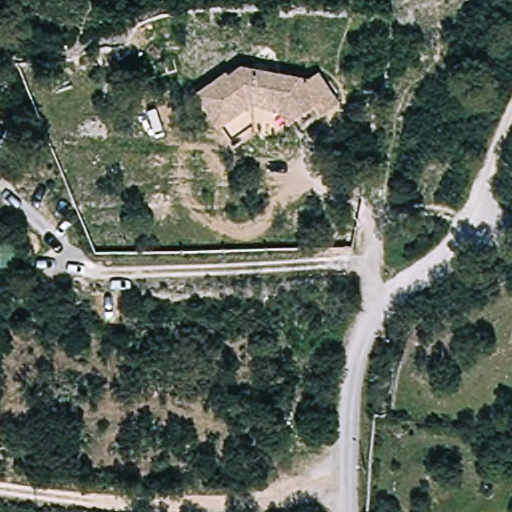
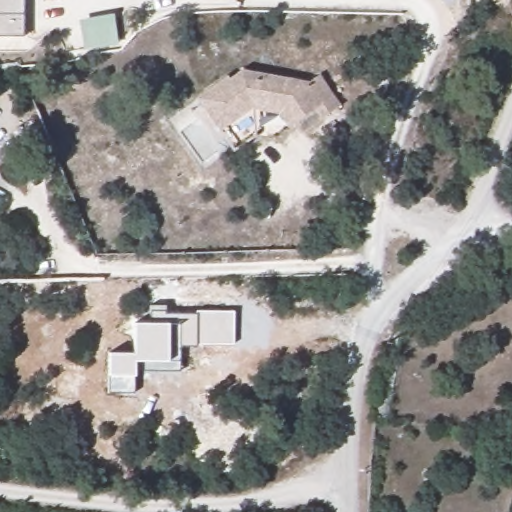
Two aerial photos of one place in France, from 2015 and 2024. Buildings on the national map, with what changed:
new [(0,37),(0,0),(23,0),(23,36),(0,37)]
unchanged [(231,72),(233,75),(246,68),(303,84),(307,90),(323,81),(341,113),(322,124),(316,113),(287,129),(278,114),(251,106),(218,125),(199,91),(231,72)]
new [(133,375),(134,392),(108,392),(108,375),(109,352),(134,352),(134,323),(150,323),(150,305),(166,304),(166,314),(197,314),(196,310),(235,311),(235,345),(180,345),(180,371),(133,369),(133,375)]

